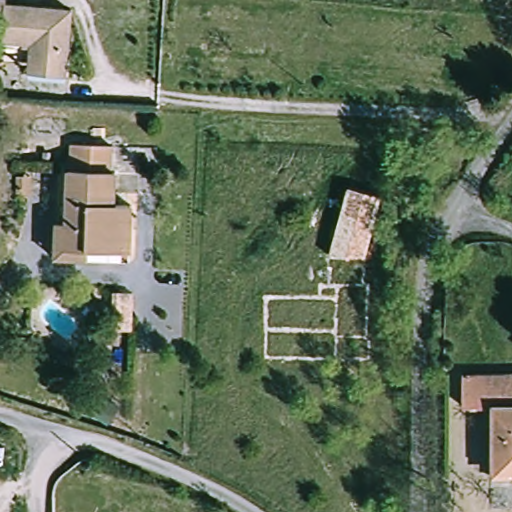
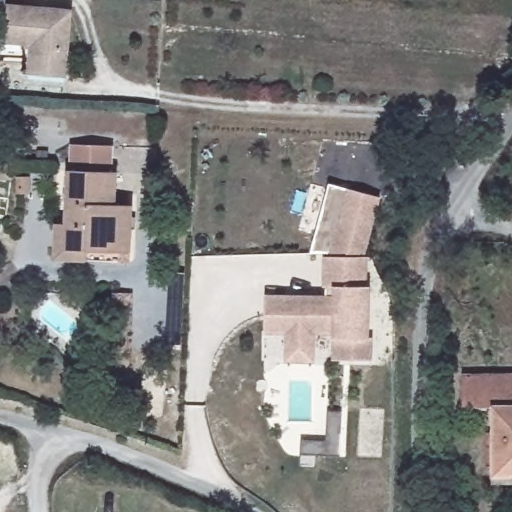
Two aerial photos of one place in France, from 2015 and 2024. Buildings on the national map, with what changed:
unchanged [(73,7),(68,73),(28,69),(30,42),(0,40),(0,31),(1,22),(2,1),(73,7)]
unchanged [(68,167),(70,167),(70,141),(110,141),(110,167),(117,167),(116,204),(133,204),(133,254),(68,253),(68,167)]
unchanged [(382,195),(365,257),(331,255),(349,187),(382,195)]
unchanged [(133,263),(53,262),(52,223),(67,223),(68,253),(133,254),(133,263)]
new [(265,293),(322,294),(324,256),(331,255),(365,257),(368,257),(369,285),(369,338),(374,338),(374,360),(331,359),(332,338),(332,334),(318,335),(316,362),(286,362),(285,334),(264,333),(265,293)]
new [(118,291),(133,292),(131,332),(116,331),(118,291)]
unchanged [(494,402),(461,401),(462,370),(512,372),(512,482),(490,481),(490,472),(494,402)]

